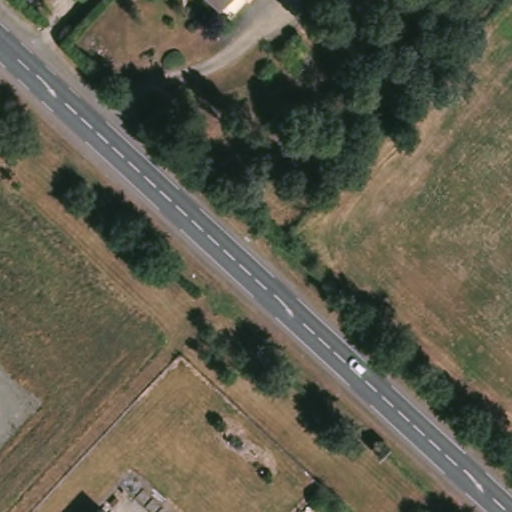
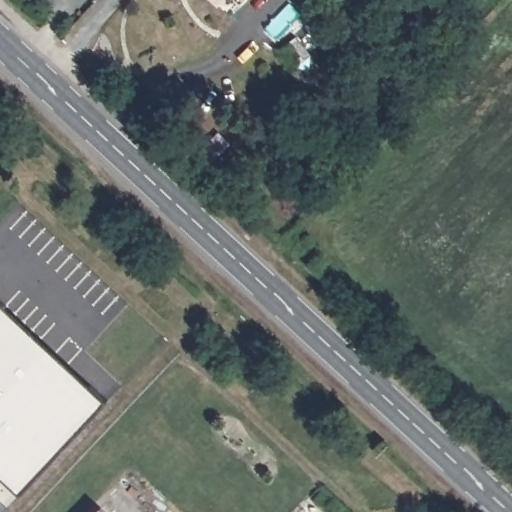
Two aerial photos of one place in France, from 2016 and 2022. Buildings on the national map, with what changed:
unchanged [(215,0),(233,0),(225,9),(215,0)]
new [(107,401),(20,495),(0,476),(0,301),(107,401)]
unchanged [(94,506),(101,512),(87,512),(94,506)]

